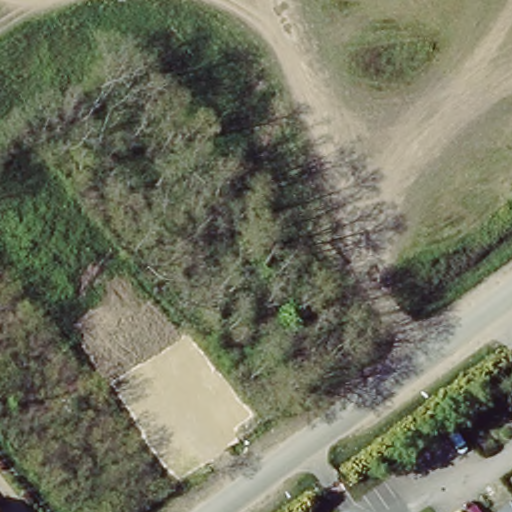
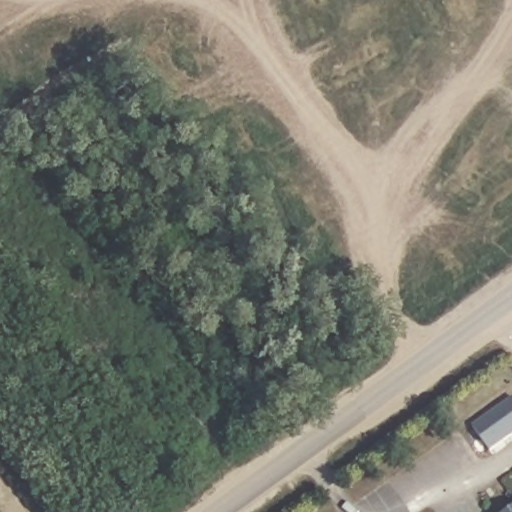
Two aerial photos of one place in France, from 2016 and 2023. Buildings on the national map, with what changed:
new [(512,398),(512,436),(492,451),(474,427),(512,398)]
unchanged [(506,512),(512,508),(512,512),(506,512)]

